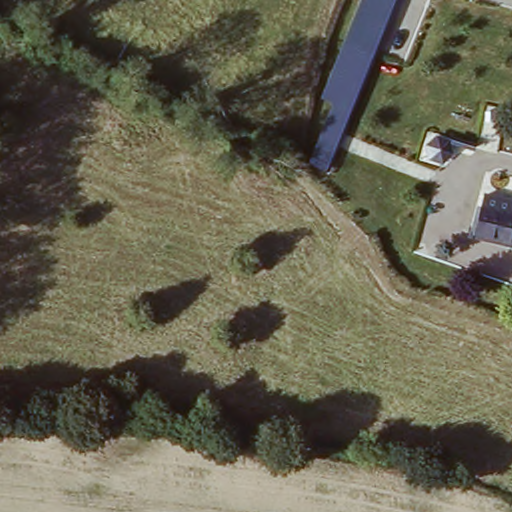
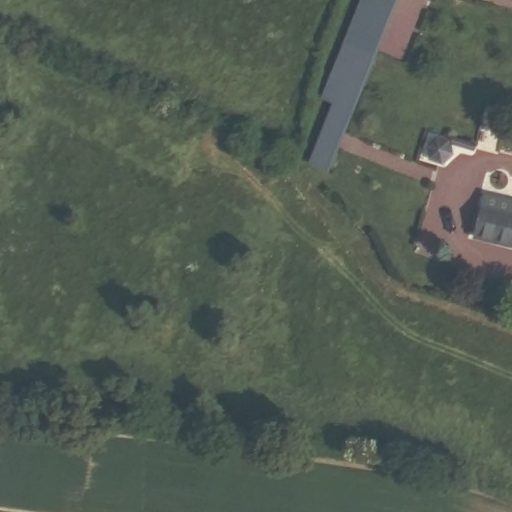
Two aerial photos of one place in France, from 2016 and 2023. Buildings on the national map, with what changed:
unchanged [(337,68),(346,36),(361,0),(390,0),(371,44),(362,76),(335,164),(316,156),(342,69),(337,68)]
unchanged [(409,134),(410,123),(426,116),(438,128),(433,140),(421,146),(409,134)]
unchanged [(479,200),(512,210),(512,251),(469,239),(479,200)]

